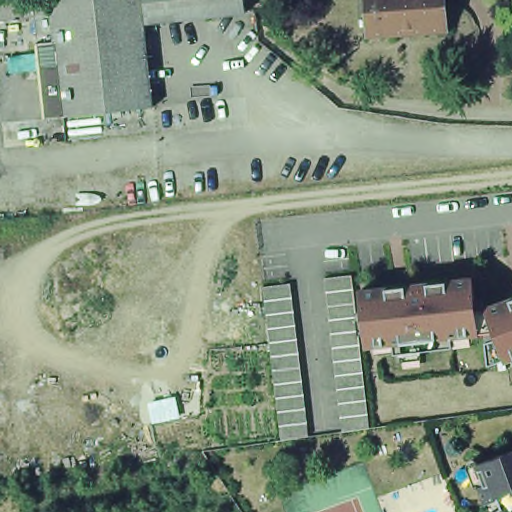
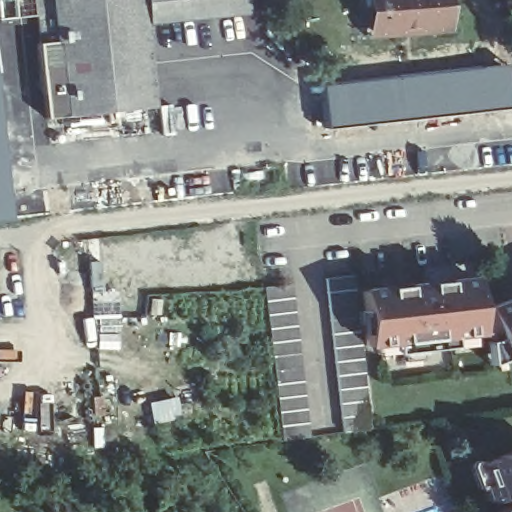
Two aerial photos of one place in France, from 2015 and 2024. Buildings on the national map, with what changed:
unchanged [(0,20),(0,0),(45,0),(47,43),(31,44),(28,16),(0,20)]
unchanged [(137,27),(145,106),(38,121),(31,44),(47,43),(45,0),(236,0),(238,14),(137,27)]
unchanged [(437,0),(440,30),(393,34),(395,39),(370,41),(360,42),(356,0),(437,0)]
new [(510,65),(512,100),(512,108),(327,129),(322,86),(510,65)]
new [(0,220),(0,103),(12,219),(0,220)]
unchanged [(347,273),(365,426),(337,429),(320,276),(347,273)]
unchanged [(478,330),(445,337),(447,347),(388,353),(387,342),(361,345),(355,289),(467,277),(471,309),(481,307),(512,295),(512,352),(497,358),(497,356),(485,362),(478,330)]
unchanged [(254,285),(280,282),(299,435),(272,438),(253,285),(254,285)]
unchanged [(512,455),(512,512),(496,512),(498,511),(495,502),(482,506),(476,491),(480,489),(473,469),(512,455)]

